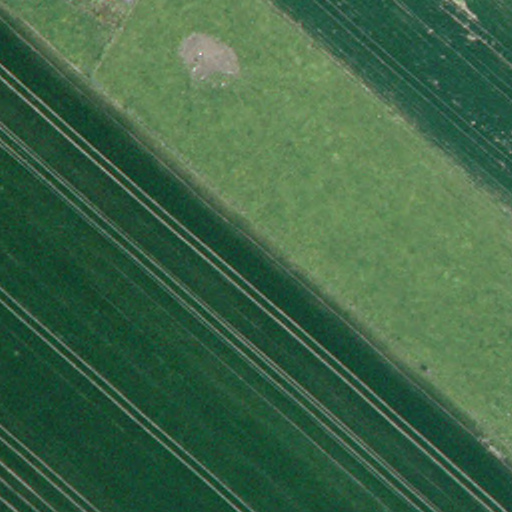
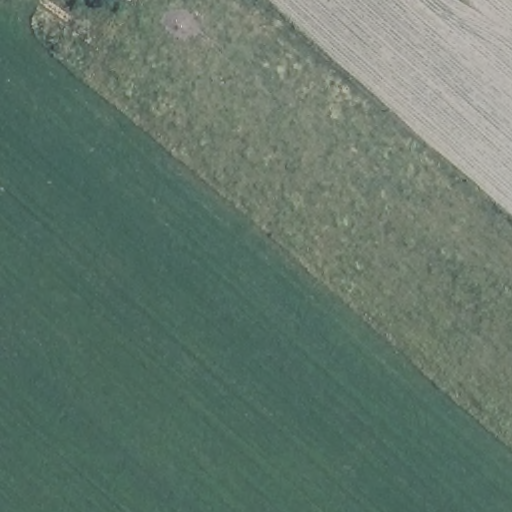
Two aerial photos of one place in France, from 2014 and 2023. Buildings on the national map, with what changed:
[]

